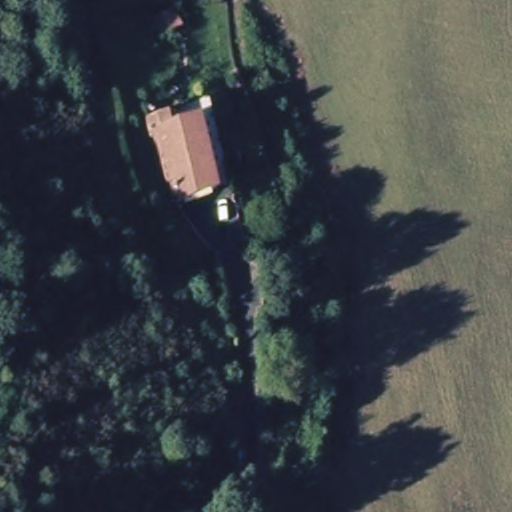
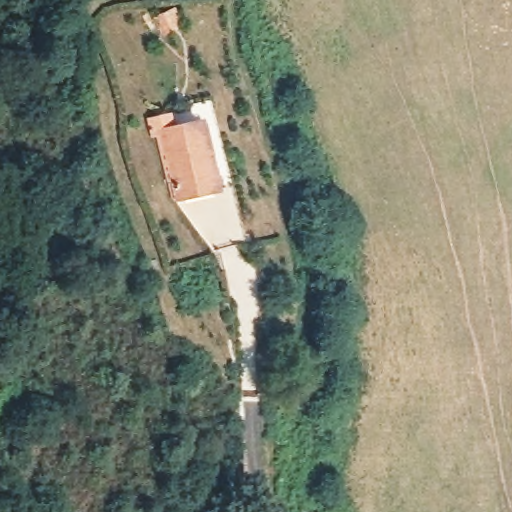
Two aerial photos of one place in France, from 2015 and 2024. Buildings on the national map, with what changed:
unchanged [(204,129),(219,197),(181,206),(162,125),(171,123),(174,136),(204,129)]
unchanged [(254,292),(258,312),(236,319),(232,296),(254,292)]

